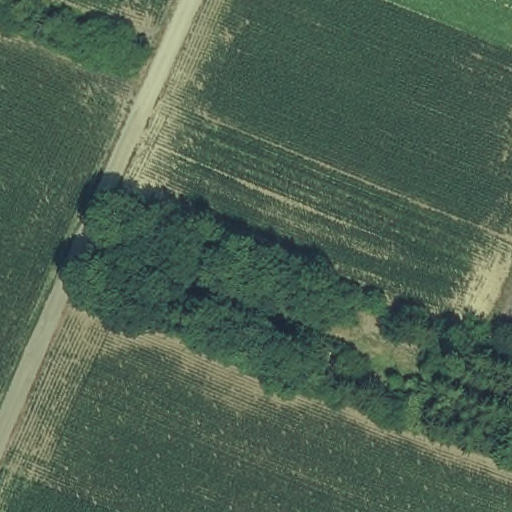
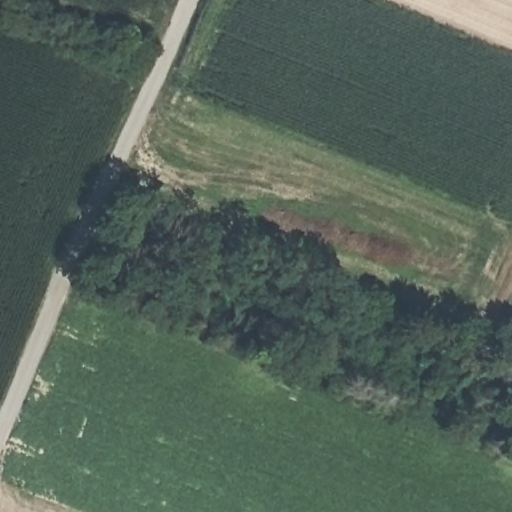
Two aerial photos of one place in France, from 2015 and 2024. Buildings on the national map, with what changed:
[]

